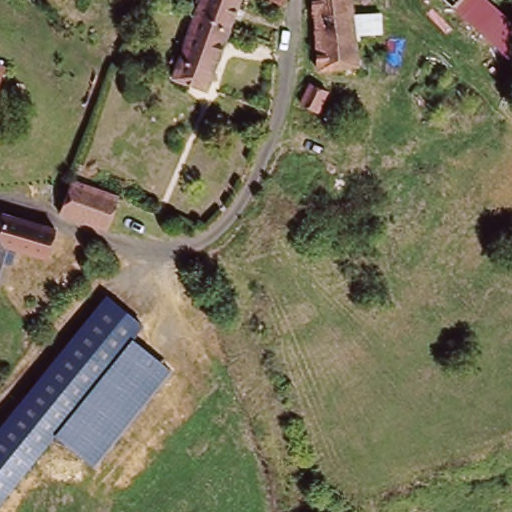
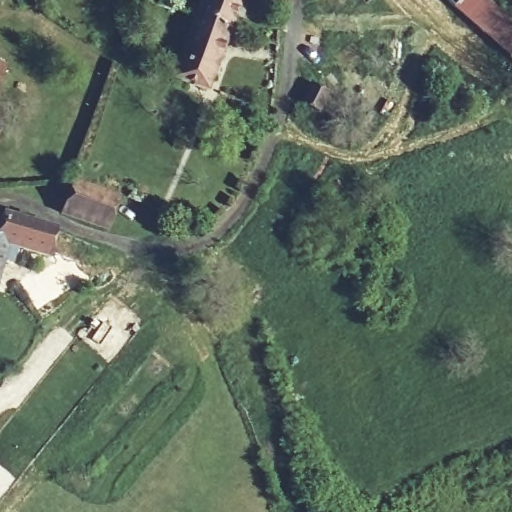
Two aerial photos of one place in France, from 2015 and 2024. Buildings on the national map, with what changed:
unchanged [(228,29),(196,18),(202,0),(238,0),(228,29)]
unchanged [(284,2),(278,0),(285,0),(284,2)]
demolished [(337,67),(318,66),(311,0),(352,0),(359,60),(343,90),(330,83),(337,67)]
unchanged [(453,10),(462,0),(490,0),(512,19),(512,62),(453,10)]
unchanged [(174,79),(196,18),(228,29),(207,91),(174,79)]
unchanged [(2,69),(0,74),(0,68),(2,69)]
unchanged [(301,100),(311,82),(327,90),(316,109),(301,100)]
unchanged [(75,179),(123,196),(111,227),(64,211),(70,192),(75,179)]
unchanged [(9,270),(4,268),(0,277),(0,222),(1,222),(3,214),(33,225),(57,232),(47,260),(24,251),(18,249),(9,270)]
demolished [(107,300),(143,328),(134,339),(59,433),(0,505),(0,431),(107,300)]

